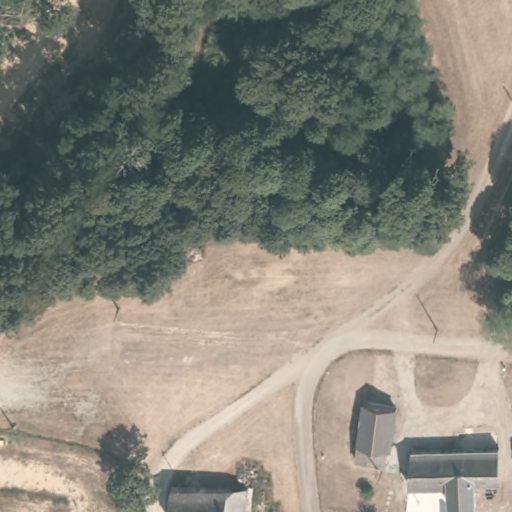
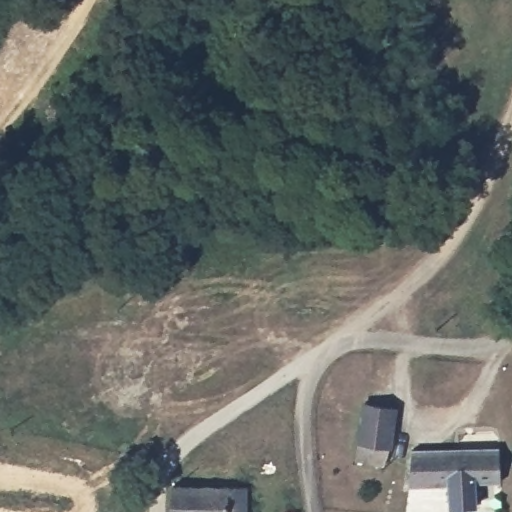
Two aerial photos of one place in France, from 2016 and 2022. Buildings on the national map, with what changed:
unchanged [(364,408),(392,412),(386,458),(383,458),(381,472),(355,467),(364,408)]
unchanged [(500,489),(449,490),(410,489),(408,454),(500,454),(500,489)]
unchanged [(166,491),(224,493),(242,493),(242,512),(166,512),(166,491)]

